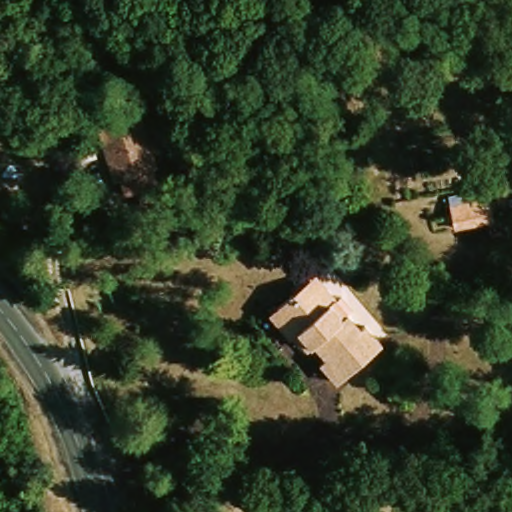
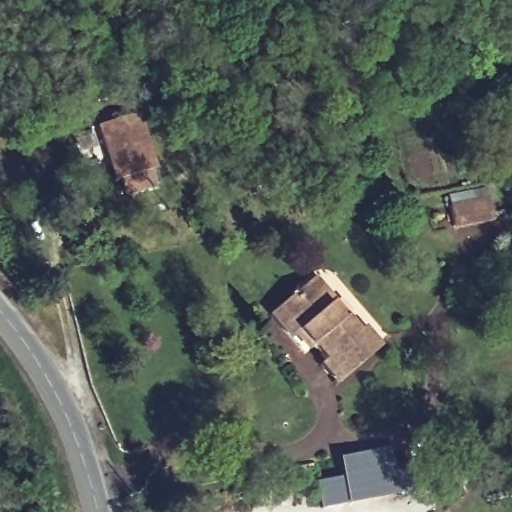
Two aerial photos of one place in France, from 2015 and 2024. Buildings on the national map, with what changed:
unchanged [(102,155),(95,122),(139,115),(150,171),(143,172),(145,183),(112,189),(110,179),(105,180),(102,155)]
unchanged [(438,229),(434,207),(472,200),(476,221),(438,229)]
unchanged [(311,274),(356,325),(360,320),(379,343),(334,382),(319,363),(326,356),(315,341),(310,345),(304,350),(269,310),(289,293),(311,274)]
new [(350,504),(321,510),(314,483),(343,477),(341,459),(391,448),(402,492),(350,504)]
demolished [(369,486),(370,508),(311,508),(311,485),(369,486)]

